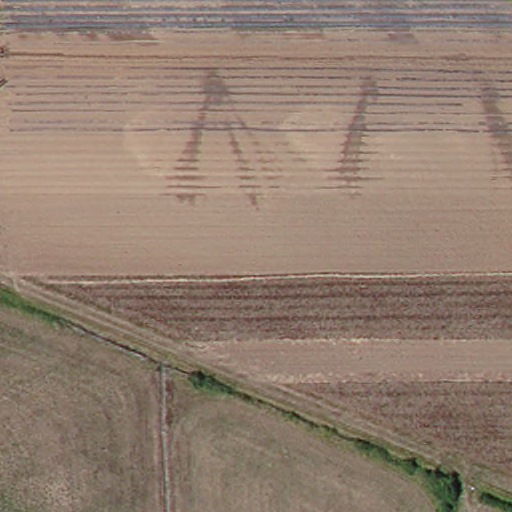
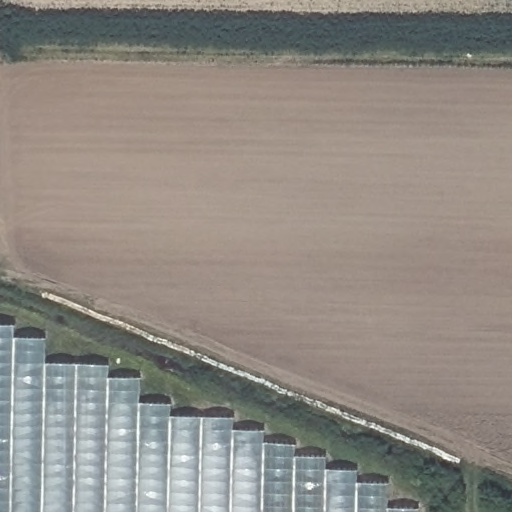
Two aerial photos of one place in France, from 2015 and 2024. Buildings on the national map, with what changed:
new [(15,324),(15,338),(45,339),(45,363),(108,366),(109,378),(140,379),(139,404),(171,404),(170,417),(233,417),(233,430),(263,430),(263,444),(294,444),(294,457),(326,457),(325,470),(357,471),(356,484),(388,484),(387,509),(415,509),(415,512),(0,512),(0,325),(15,324)]

